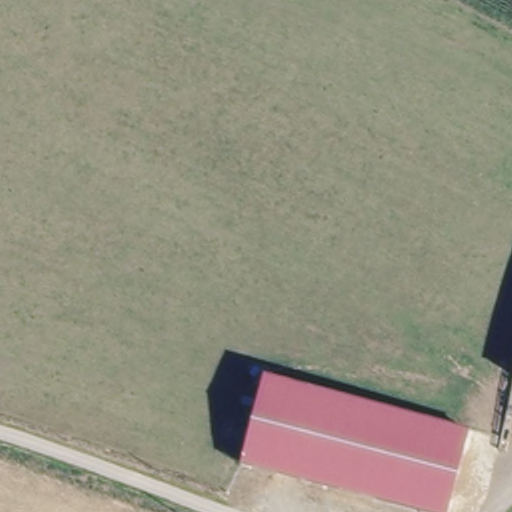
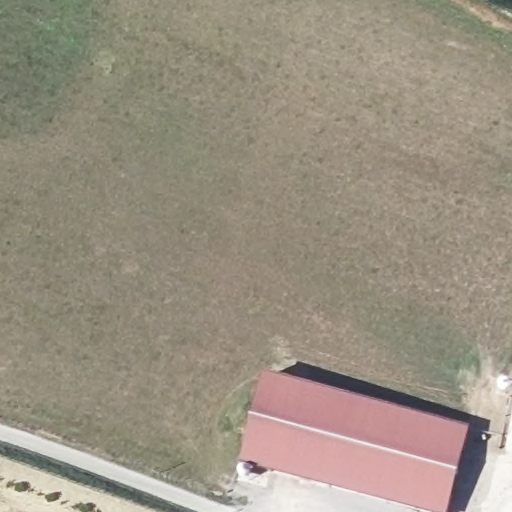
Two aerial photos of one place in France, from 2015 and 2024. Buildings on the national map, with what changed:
unchanged [(511,379),(512,375),(512,379),(511,379)]
unchanged [(453,512),(432,512),(245,470),(265,382),(472,429),(453,512)]

